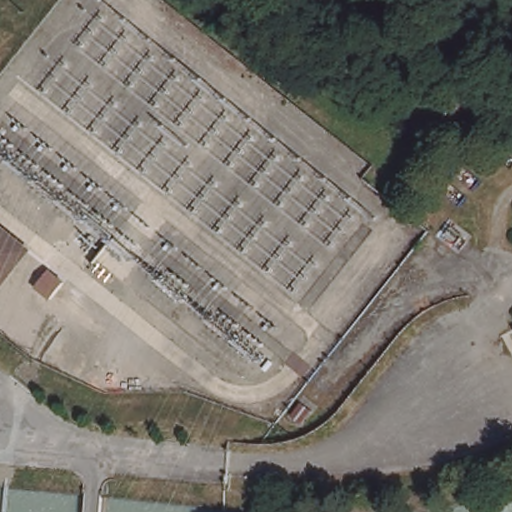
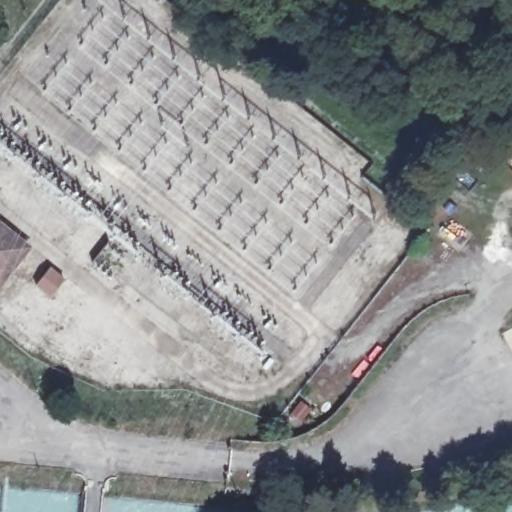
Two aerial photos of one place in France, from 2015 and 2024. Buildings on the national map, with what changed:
unchanged [(25,245),(0,278),(0,224),(25,245)]
unchanged [(292,418),(303,400),(313,409),(302,424),(292,418)]

